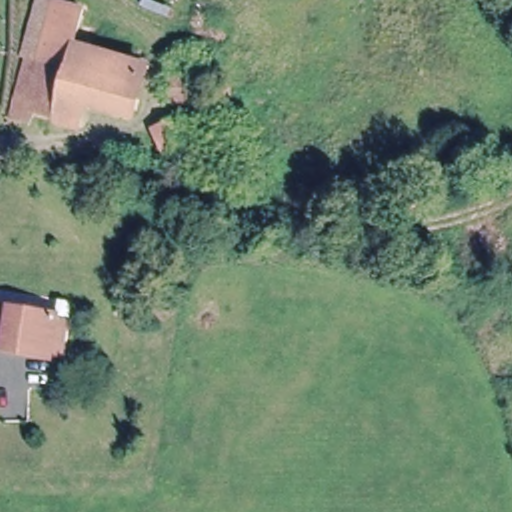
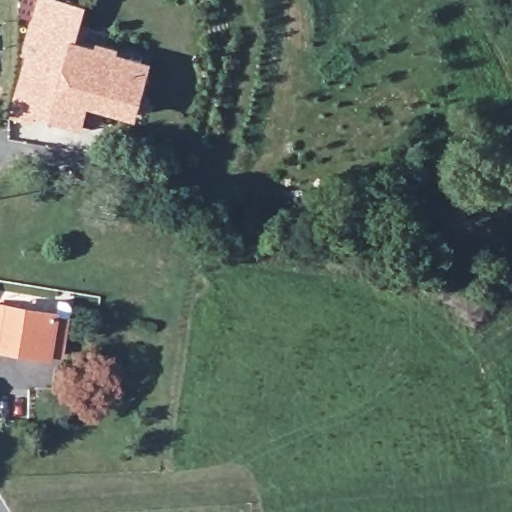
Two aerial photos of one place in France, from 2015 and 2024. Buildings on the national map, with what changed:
unchanged [(19,55),(35,0),(59,0),(84,7),(74,42),(149,64),(134,121),(85,106),(77,130),(51,122),(52,119),(65,69),(48,64),(33,112),(30,122),(9,115),(24,57),(19,55)]
unchanged [(6,342),(7,337),(0,336),(0,299),(58,309),(61,293),(70,295),(74,300),(69,336),(66,347),(52,345),(51,349),(6,342)]

